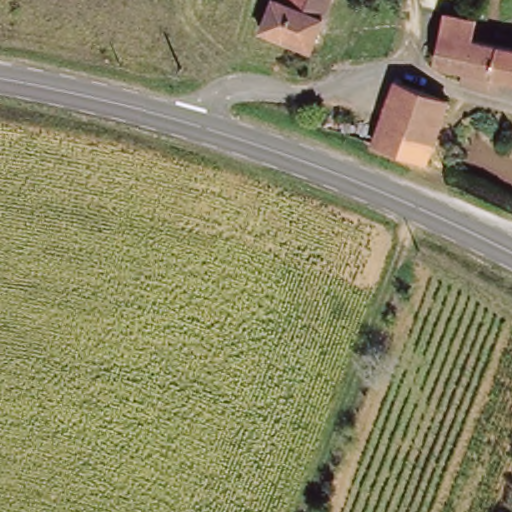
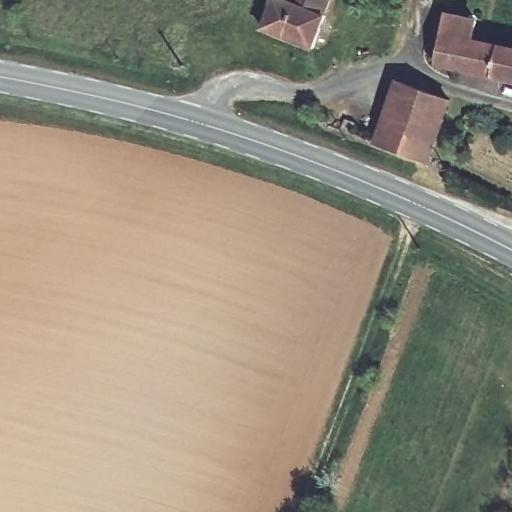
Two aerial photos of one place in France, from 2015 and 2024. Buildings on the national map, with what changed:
unchanged [(315,55),(261,32),(274,0),(337,0),(315,55)]
unchanged [(437,68),(443,35),(447,14),(476,19),(471,40),(512,50),(512,83),(498,80),(495,94),(465,87),(467,74),(437,68)]
unchanged [(512,47),(475,39),(478,25),(512,37),(512,47)]
unchanged [(374,147),(398,84),(403,85),(450,102),(429,166),(374,147)]

